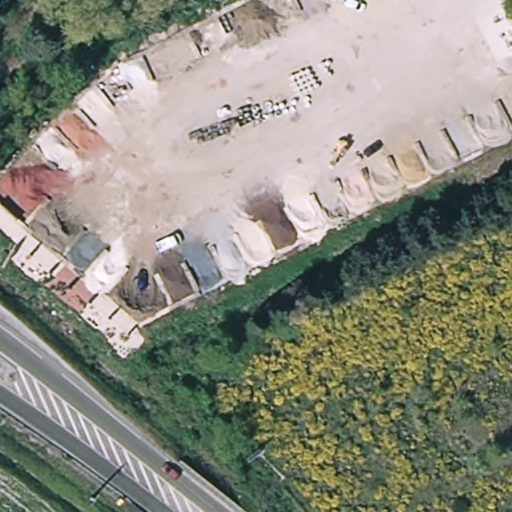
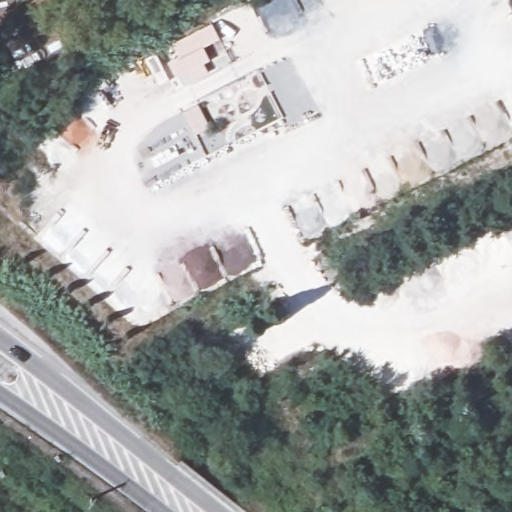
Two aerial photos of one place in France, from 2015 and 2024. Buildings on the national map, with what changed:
new [(209,72),(191,81),(187,72),(176,79),(167,61),(177,55),(171,43),(212,22),(221,39),(204,47),(211,60),(205,64),(209,72)]

